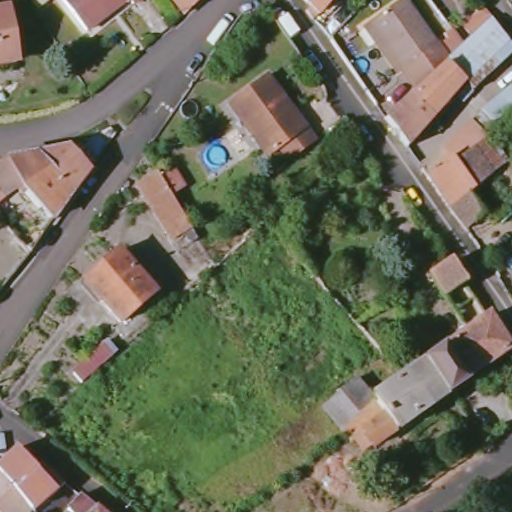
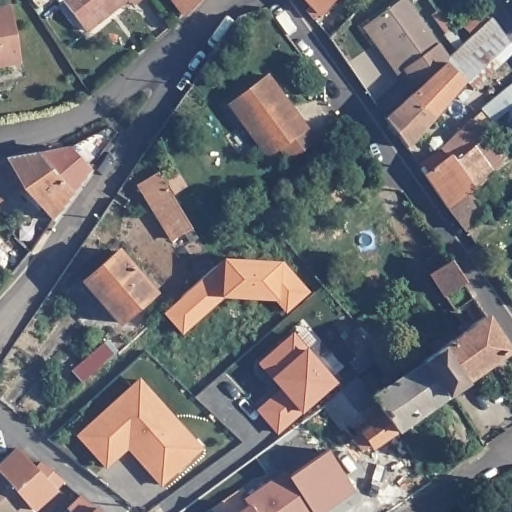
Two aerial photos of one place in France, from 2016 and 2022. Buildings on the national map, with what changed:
unchanged [(57,0),(118,0),(82,29),(57,0)]
unchanged [(126,2),(124,0),(129,0),(126,2)]
unchanged [(306,20),(298,12),(302,6),(297,0),(325,0),(306,20)]
unchanged [(365,21),(396,0),(401,0),(440,59),(410,89),(365,21)]
unchanged [(440,59),(457,42),(466,33),(461,26),(481,6),(510,50),(455,102),(451,99),(426,126),(422,123),(420,125),(400,99),(410,89),(440,59)]
unchanged [(8,70),(0,71),(0,14),(8,70)]
unchanged [(264,73),(310,139),(282,158),(273,144),(261,153),(225,100),(264,73)]
unchanged [(447,209),(424,176),(447,156),(444,152),(472,127),(466,119),(512,77),(512,109),(485,132),(496,148),(483,158),(494,176),(469,193),(477,205),(483,213),(464,229),(447,209)]
unchanged [(400,148),(378,120),(390,109),(400,99),(420,125),(400,148)]
unchanged [(26,176),(11,188),(0,175),(0,157),(38,149),(57,146),(67,142),(86,164),(72,186),(55,211),(26,176)]
unchanged [(191,228),(173,240),(134,185),(152,172),(191,228)]
unchanged [(114,324),(80,281),(115,254),(148,295),(114,324)]
new [(223,259),(280,263),(282,261),(310,292),(285,313),(278,301),(223,298),(182,334),(165,313),(223,259)]
unchanged [(458,287),(440,301),(425,281),(445,267),(458,287)]
unchanged [(415,353),(440,336),(445,344),(485,317),(508,351),(445,395),(415,353)]
new [(280,389),(270,378),(257,362),(292,333),(306,348),(336,382),(301,411),(277,434),(256,410),(280,389)]
unchanged [(73,370),(110,339),(119,349),(81,381),(73,370)]
unchanged [(321,405),(353,375),(371,396),(400,376),(415,364),(410,356),(415,353),(445,395),(370,445),(361,435),(353,441),(321,405)]
new [(203,449),(161,486),(128,450),(106,468),(76,436),(140,377),(203,449)]
unchanged [(14,448),(15,449),(34,469),(40,464),(63,481),(27,509),(25,512),(0,512),(0,462),(14,448)]
new [(323,512),(238,512),(248,505),(243,499),(284,470),(287,477),(326,451),(354,491),(323,512)]
unchanged [(80,495),(94,505),(100,512),(61,512),(60,511),(80,495)]

